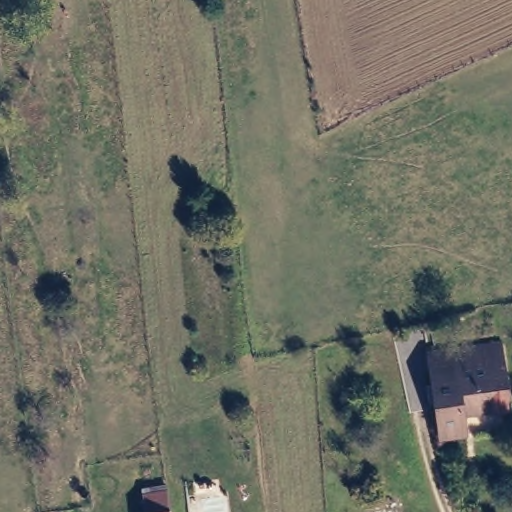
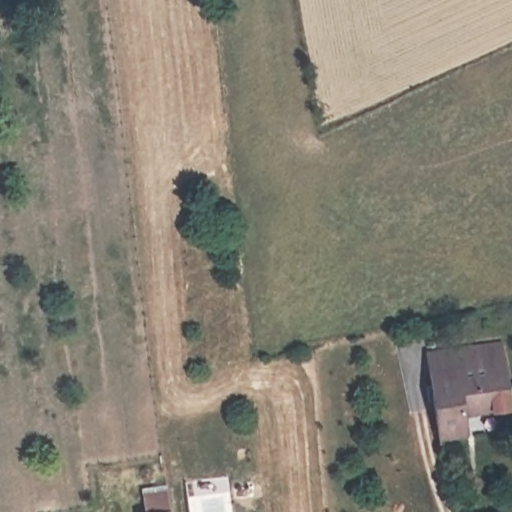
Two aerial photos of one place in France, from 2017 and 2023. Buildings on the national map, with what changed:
unchanged [(502,338),(509,399),(472,405),(468,397),(461,400),(462,425),(439,426),(428,345),(502,338)]
unchanged [(166,512),(141,512),(139,497),(164,496),(165,504),(166,512)]

